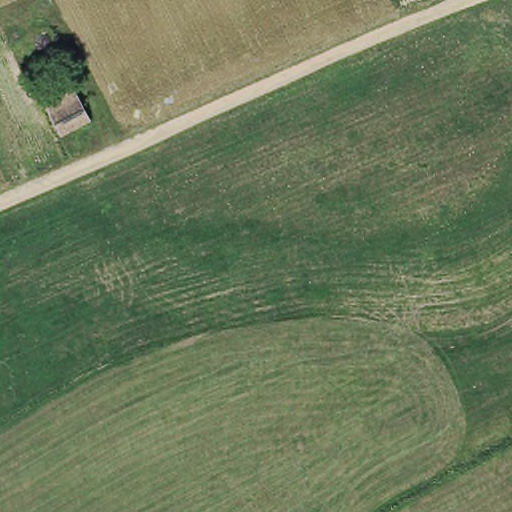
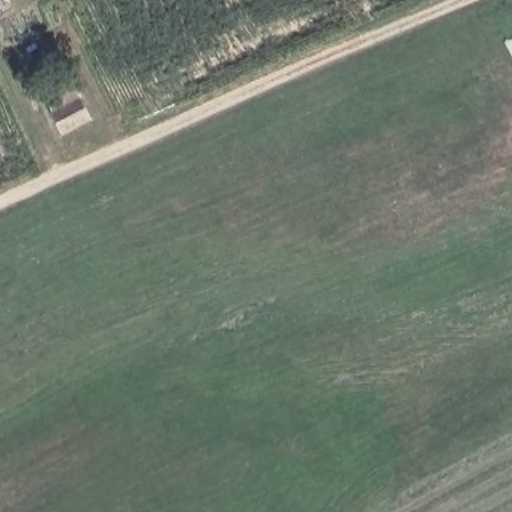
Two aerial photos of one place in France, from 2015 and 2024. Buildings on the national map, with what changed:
unchanged [(79,101),(87,118),(65,131),(56,113),(79,101)]

